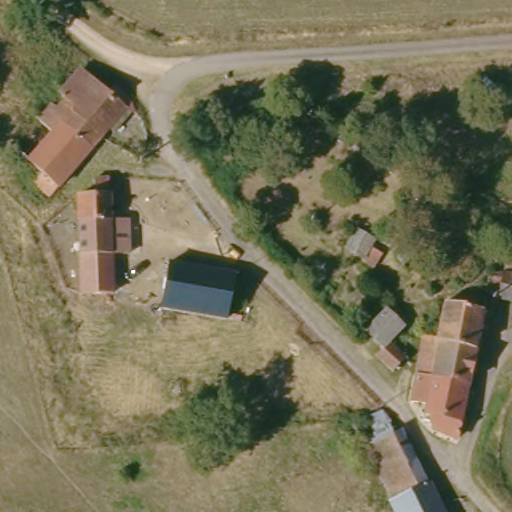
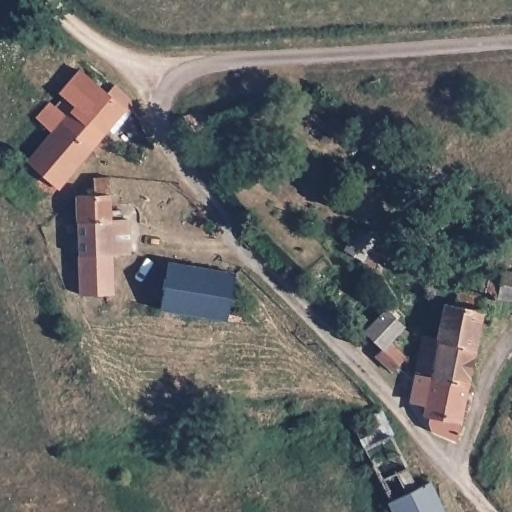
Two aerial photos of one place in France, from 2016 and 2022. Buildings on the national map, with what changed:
unchanged [(98,137),(42,196),(14,171),(24,160),(6,142),(68,75),(97,103),(102,97),(121,112),(121,113),(98,137)]
unchanged [(181,127),(205,122),(209,136),(187,141),(181,127)]
unchanged [(70,191),(84,190),(82,176),(107,175),(112,249),(74,251),(71,211),(70,191)]
unchanged [(426,246),(405,269),(394,258),(415,235),(426,246)]
unchanged [(382,256),(370,273),(354,261),(366,245),(382,256)]
unchanged [(114,255),(114,292),(79,295),(77,257),(114,255)]
unchanged [(157,308),(166,260),(235,272),(225,321),(186,314),(181,337),(153,332),(157,308)]
unchanged [(512,272),(512,303),(502,302),(505,271),(512,272)]
unchanged [(466,381),(407,371),(414,335),(430,337),(437,302),(479,310),(473,345),(466,381)]
unchanged [(375,347),(357,330),(380,306),(398,323),(382,340),(398,356),(384,371),(375,362),(367,354),(375,347)]
unchanged [(466,381),(455,438),(431,435),(417,411),(400,408),(404,391),(407,371),(466,381)]
unchanged [(422,479),(381,498),(345,423),(376,407),(388,430),(397,426),(399,428),(422,479)]
unchanged [(381,498),(422,479),(438,512),(387,512),(381,498)]

